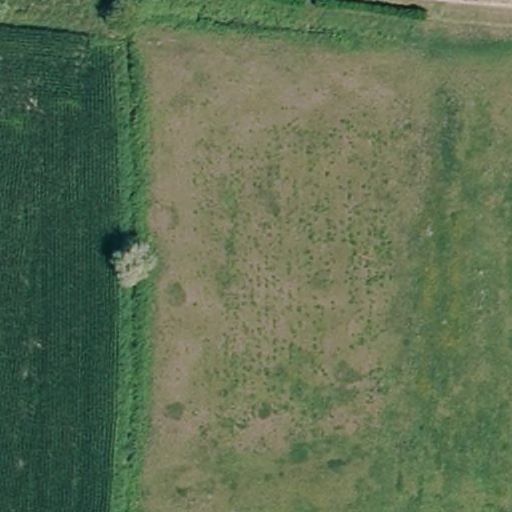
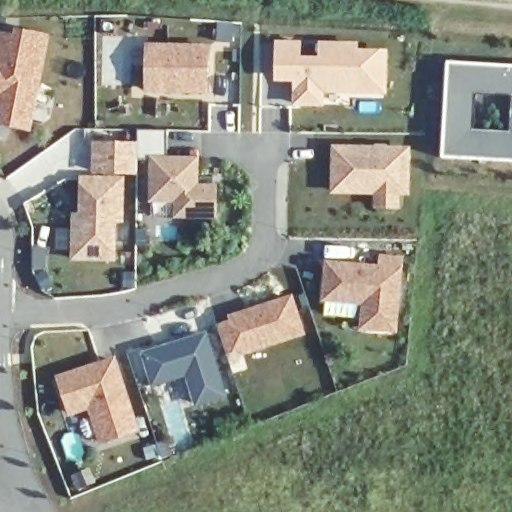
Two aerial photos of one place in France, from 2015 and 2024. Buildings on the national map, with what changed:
new [(11,95),(0,92),(0,62),(6,63),(11,35),(26,37),(28,32),(55,37),(38,127),(14,123),(6,121),(6,117),(11,95)]
new [(293,107),(294,82),(275,82),(275,41),(302,41),(301,57),(320,57),(319,42),(359,42),(359,50),(389,51),(387,95),(326,94),(326,107),(293,107)]
new [(145,93),(146,44),(210,45),(209,95),(145,93)]
new [(512,95),(476,94),(475,130),(512,132),(512,162),(443,158),(448,62),(512,66),(512,95)]
new [(219,221),(175,220),(174,205),(151,204),(150,160),(140,160),(140,142),(140,130),(169,130),(169,157),(202,157),(201,184),(219,184),(219,221)]
new [(118,262),(71,262),(73,212),(80,212),(81,176),(94,175),(94,142),(140,142),(140,160),(139,176),(125,176),(125,224),(119,224),(118,262)]
new [(334,195),(335,152),(407,154),(406,197),(397,197),(396,212),(376,211),(377,196),(334,195)]
new [(320,260),(374,265),(375,254),(393,255),(387,328),(355,326),(356,301),(316,297),(320,260)]
new [(245,352),(243,347),(226,352),(219,327),(234,322),(234,317),(291,299),(302,333),(245,352)]
new [(214,340),(232,400),(205,408),(196,377),(162,388),(153,358),(214,340)]
new [(56,377),(117,357),(141,432),(99,446),(87,412),(70,417),(56,377)]

